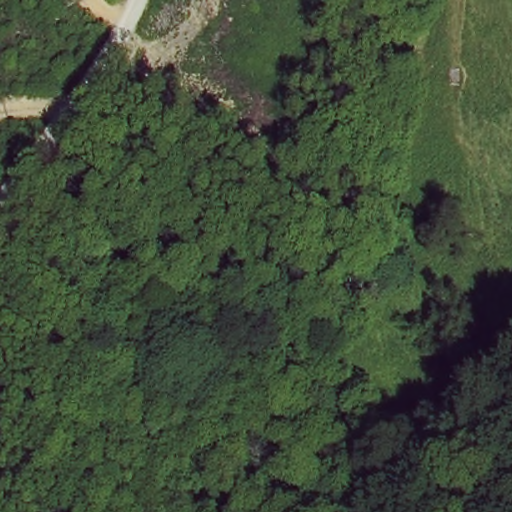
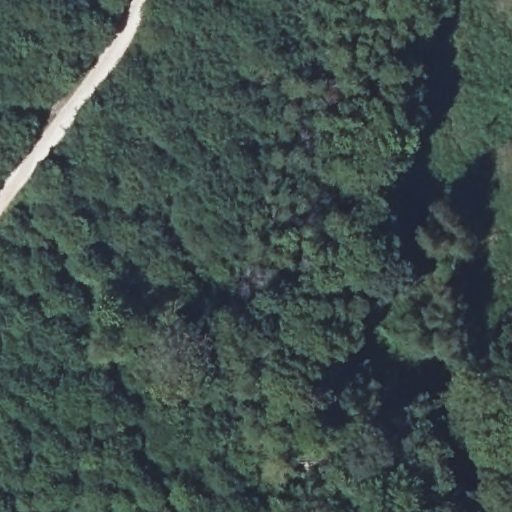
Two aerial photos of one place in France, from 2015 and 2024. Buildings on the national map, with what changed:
[]

